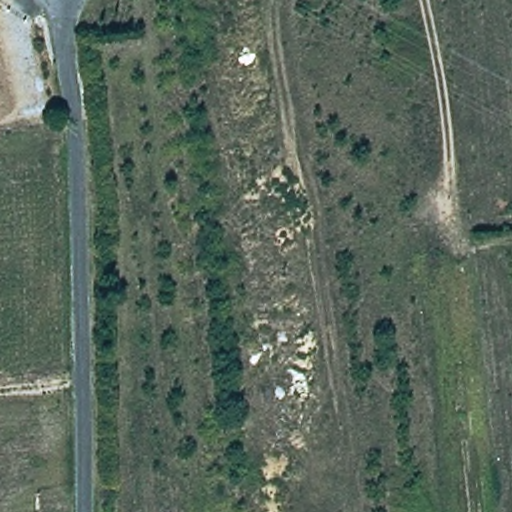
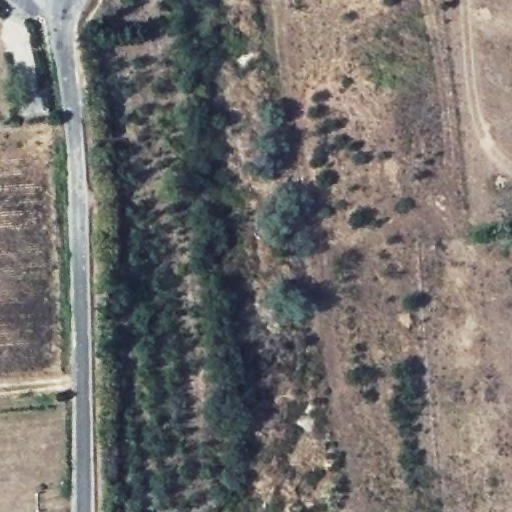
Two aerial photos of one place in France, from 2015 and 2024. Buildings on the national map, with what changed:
[]

